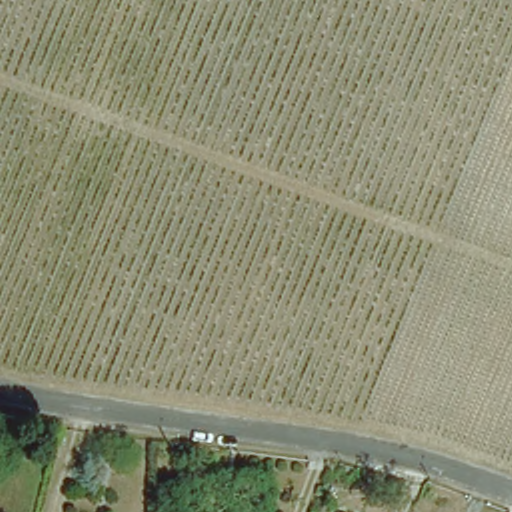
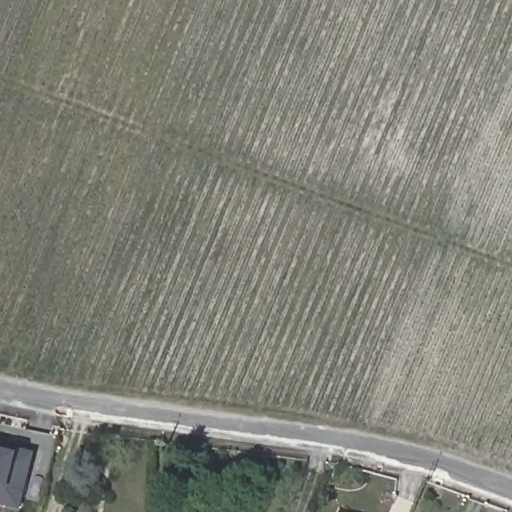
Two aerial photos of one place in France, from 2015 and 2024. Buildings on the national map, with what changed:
new [(0,505),(0,440),(4,440),(3,445),(35,452),(21,509),(0,505)]

